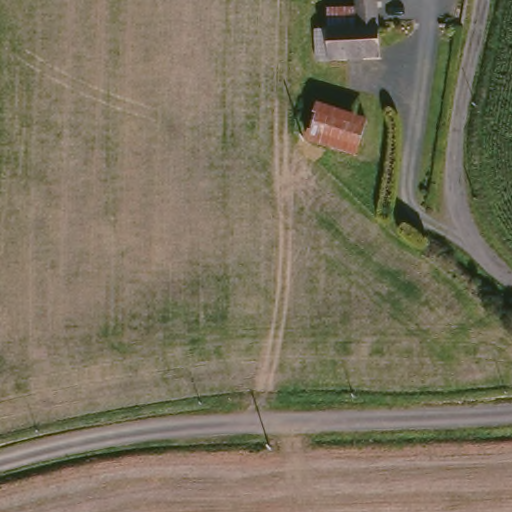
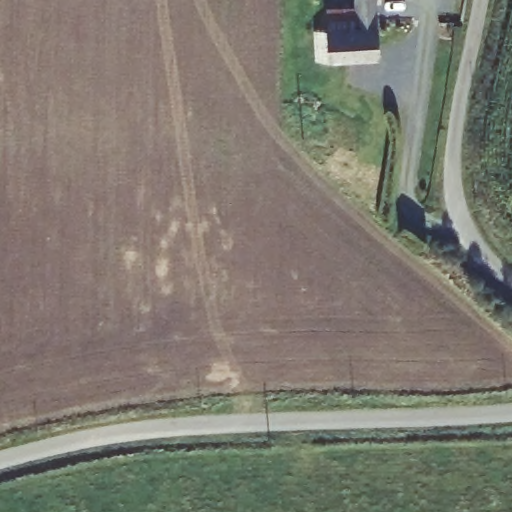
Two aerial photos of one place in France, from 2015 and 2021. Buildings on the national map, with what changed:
unchanged [(318,33),(318,32),(318,10),(338,10),(338,0),(369,0),(369,29),(370,60),(319,60),(318,33)]
demolished [(366,117),(355,157),(303,145),(316,106),(366,117)]

